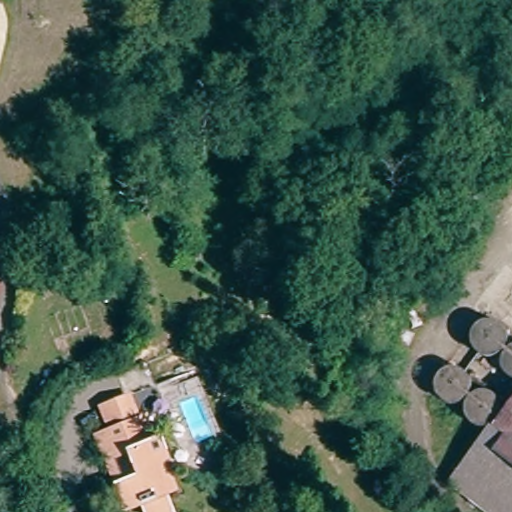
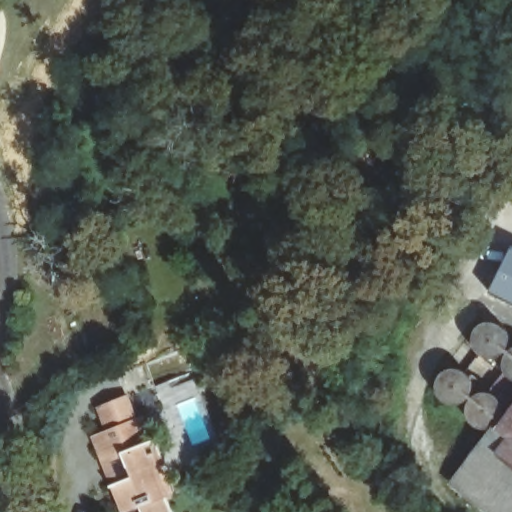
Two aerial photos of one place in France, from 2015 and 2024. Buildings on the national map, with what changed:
new [(512,304),(490,293),(512,246),(512,304)]
unchanged [(5,292),(0,299),(0,289),(5,292)]
unchanged [(485,322),(495,318),(507,321),(512,326),(512,350),(510,352),(501,354),(487,353),(481,346),(478,339),(479,330),(485,322)]
unchanged [(512,354),(512,366),(511,363),(512,354)]
unchanged [(470,372),(475,378),(476,387),(473,396),(468,402),(460,405),(447,404),(439,394),(438,385),(440,378),(445,372),(450,369),(457,368),(464,368),(470,372)]
unchanged [(119,504),(110,479),(101,454),(94,434),(114,427),(105,402),(132,392),(142,418),(147,415),(154,437),(160,434),(170,462),(164,464),(171,484),(166,486),(175,512),(144,512),(142,506),(123,512),(121,512),(119,504)]
unchanged [(471,402),(477,395),(484,392),(490,392),(495,393),(505,399),(509,407),(509,418),(503,425),(494,431),(485,429),(477,425),(471,418),(471,409),(471,402)]
unchanged [(512,423),(512,512),(491,512),(460,488),(512,423)]

